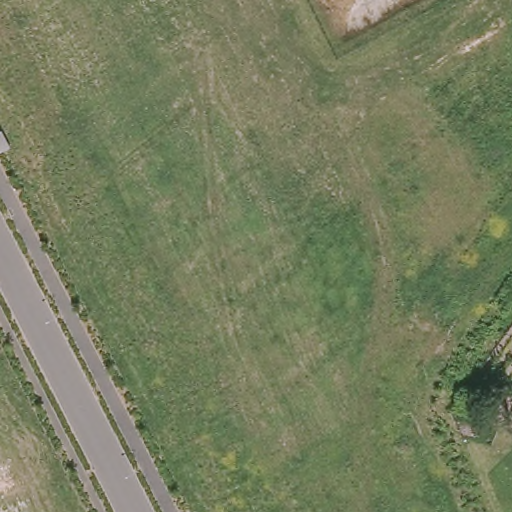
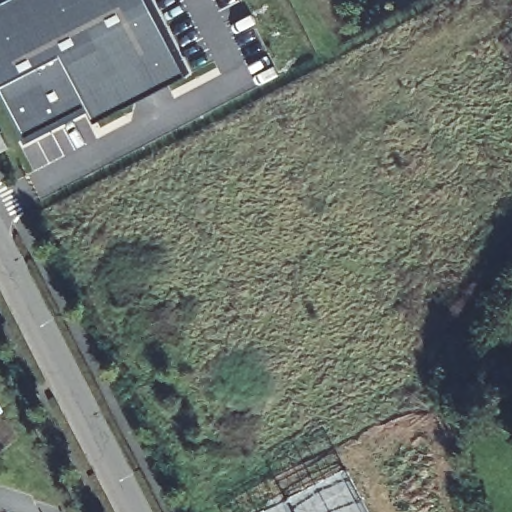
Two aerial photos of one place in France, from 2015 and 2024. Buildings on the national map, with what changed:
new [(2,0),(149,0),(185,73),(94,114),(88,102),(24,134),(0,86),(0,1),(2,0)]
new [(0,512),(0,411),(5,408),(62,512),(0,512)]

